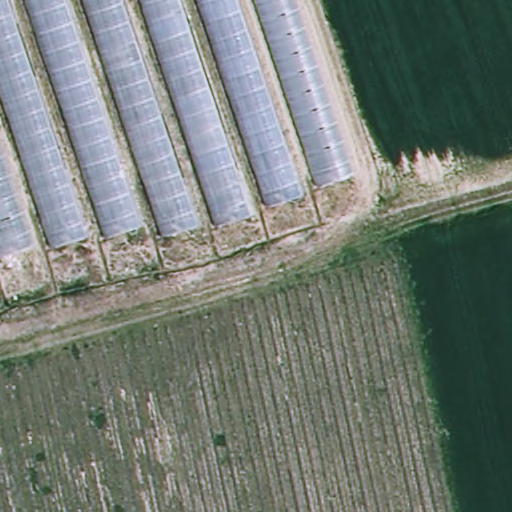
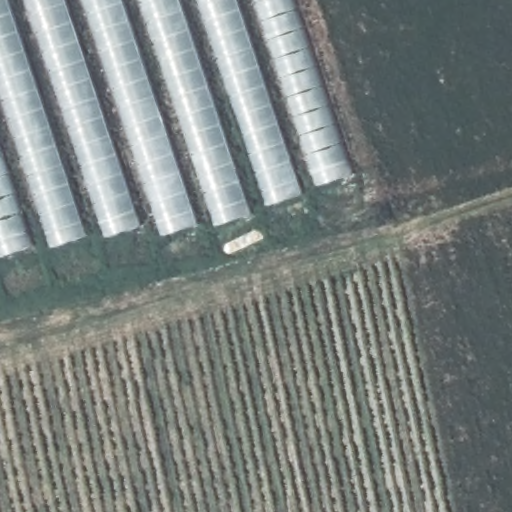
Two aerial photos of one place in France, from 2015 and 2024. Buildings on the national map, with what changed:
unchanged [(354,174),(213,226),(153,230),(94,233),(0,263),(0,0),(296,0),(354,174)]

